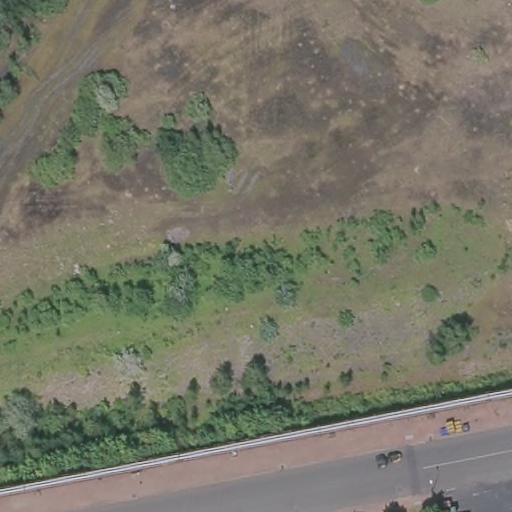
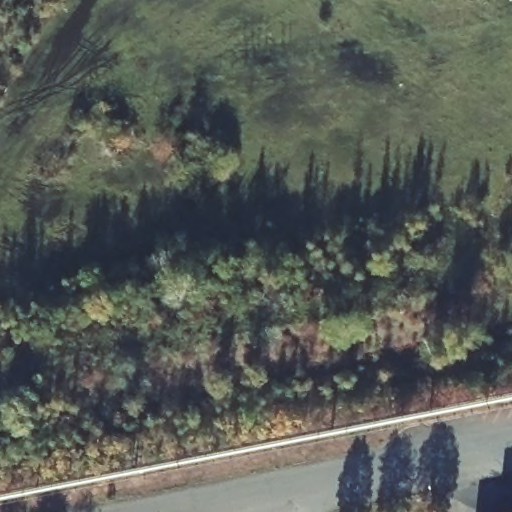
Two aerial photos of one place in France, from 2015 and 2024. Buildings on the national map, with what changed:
[]

